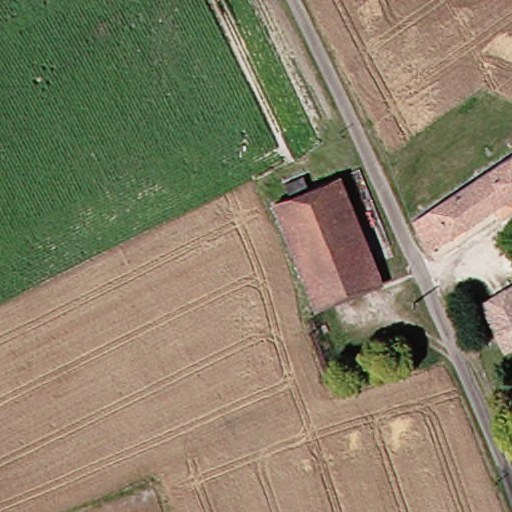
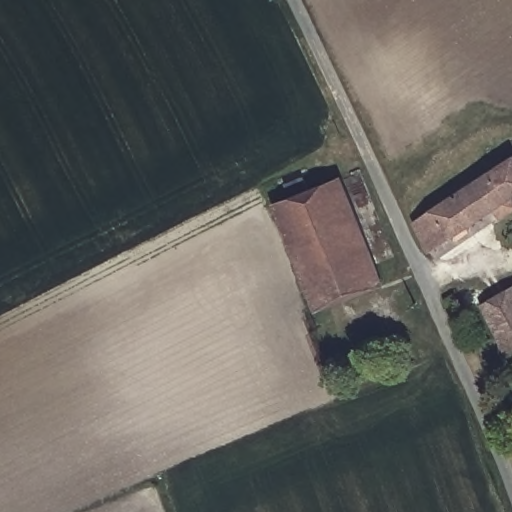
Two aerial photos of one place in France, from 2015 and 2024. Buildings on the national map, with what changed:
unchanged [(280,206),(348,176),(380,252),(312,282),(280,206)]
unchanged [(419,221),(512,176),(512,213),(431,250),(419,221)]
unchanged [(380,252),(393,282),(326,312),(312,282),(380,252)]
unchanged [(511,353),(488,299),(512,290),(512,352),(511,353)]

